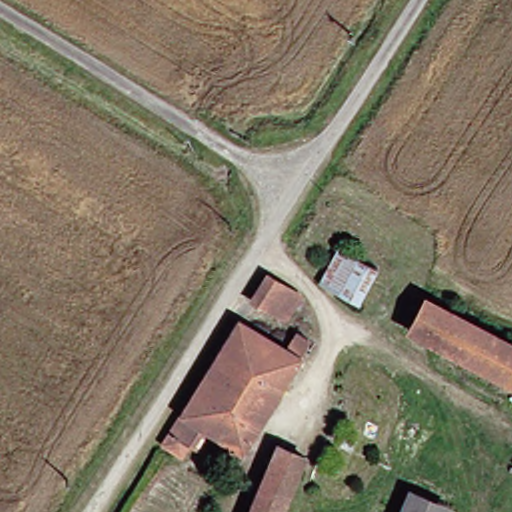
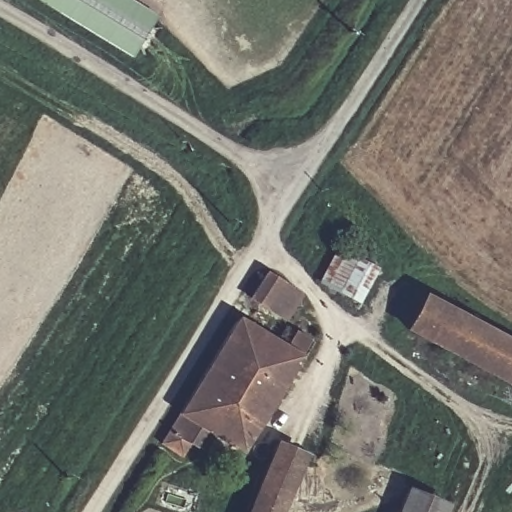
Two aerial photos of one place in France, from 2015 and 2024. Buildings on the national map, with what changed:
new [(156,12),(132,52),(48,0),(136,0),(156,12)]
unchanged [(362,296),(328,277),(345,246),(380,266),(362,296)]
unchanged [(290,320),(284,316),(255,298),(270,275),(298,292),(305,296),(290,320)]
unchanged [(512,376),(414,323),(428,293),(512,339),(512,376)]
unchanged [(245,447),(202,419),(184,449),(164,437),(242,313),(288,341),(298,326),(310,332),(316,336),(310,347),(303,343),(300,351),(303,353),(285,382),(255,431),(245,447)]
unchanged [(248,512),(279,439),(307,451),(282,512),(248,512)]
unchanged [(399,512),(411,483),(451,500),(446,512),(399,512)]

